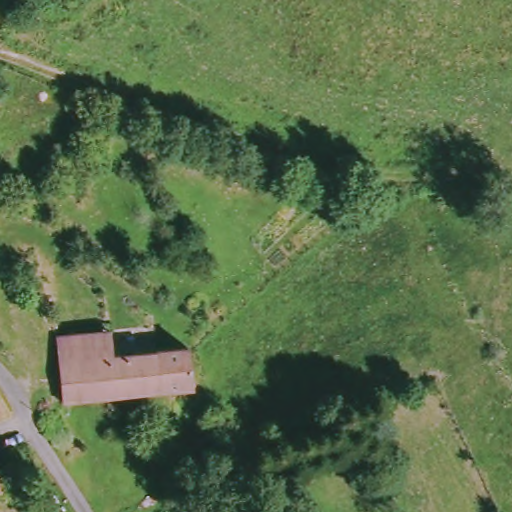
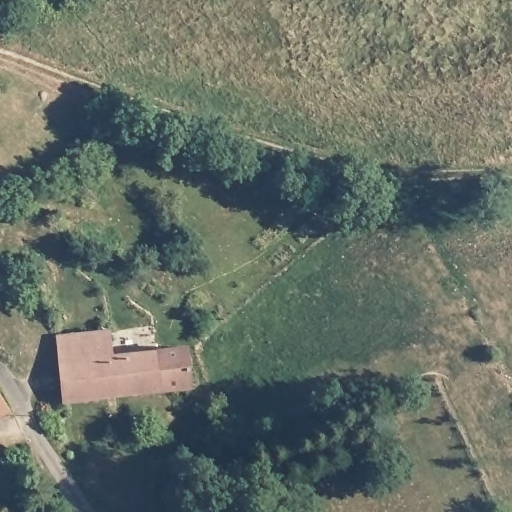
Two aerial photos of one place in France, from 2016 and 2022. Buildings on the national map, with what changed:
unchanged [(59,342),(115,335),(118,357),(191,348),(196,389),(66,405),(59,342)]
unchanged [(0,417),(0,392),(11,413),(0,417)]
unchanged [(1,477),(0,478),(0,470),(3,472),(1,477)]

